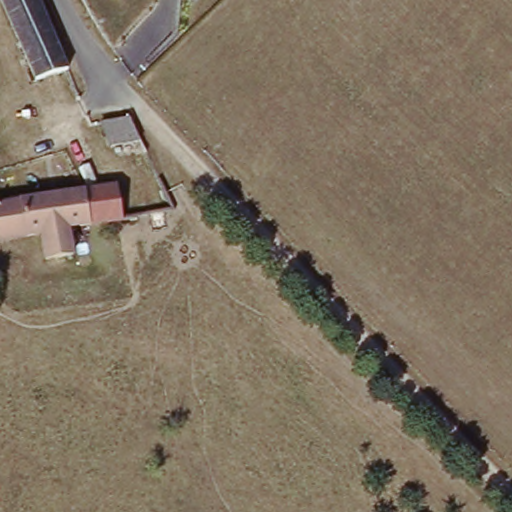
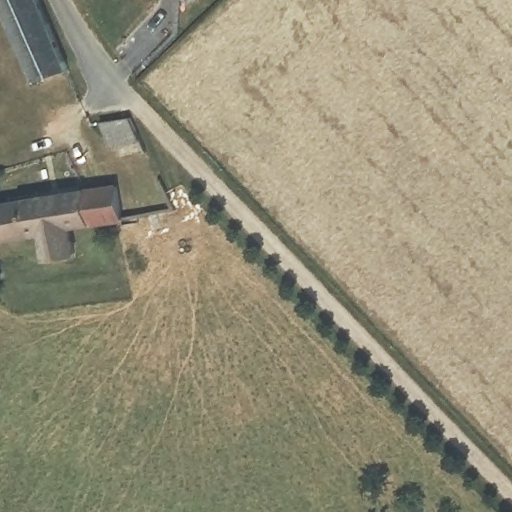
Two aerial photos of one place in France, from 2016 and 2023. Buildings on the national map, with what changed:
unchanged [(77,72),(41,87),(6,0),(45,0),(77,72)]
unchanged [(198,5),(193,0),(203,0),(198,5)]
unchanged [(112,144),(104,121),(133,120),(142,142),(112,144)]
unchanged [(4,234),(0,216),(0,200),(124,183),(130,217),(80,227),(83,251),(56,255),(51,231),(9,237),(11,247),(0,248),(0,235),(4,234)]

